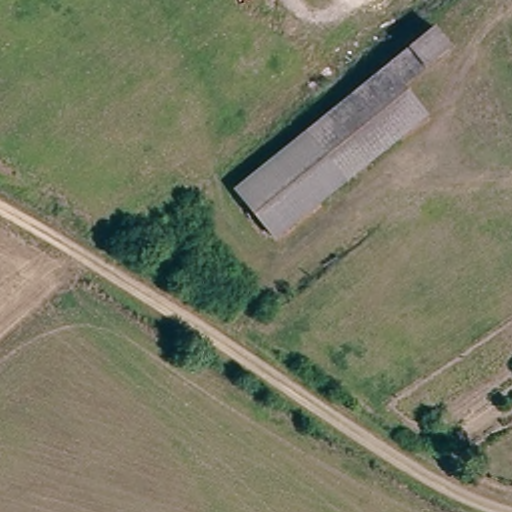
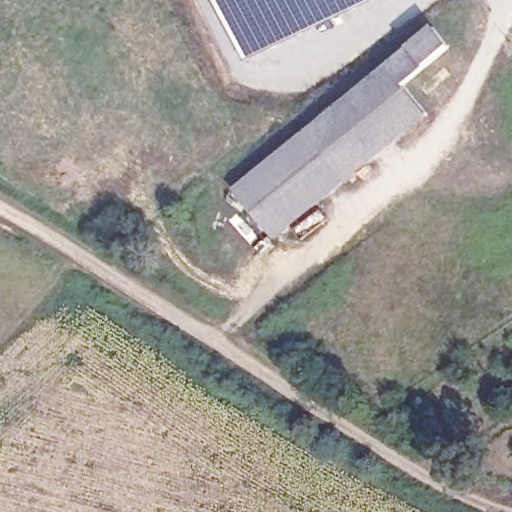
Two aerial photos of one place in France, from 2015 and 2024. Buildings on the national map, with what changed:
new [(216,0),(375,0),(245,62),(216,0)]
unchanged [(434,27),(453,52),(407,88),(388,64),(434,27)]
unchanged [(407,88),(427,114),(274,235),(236,187),(388,64),(407,88)]

